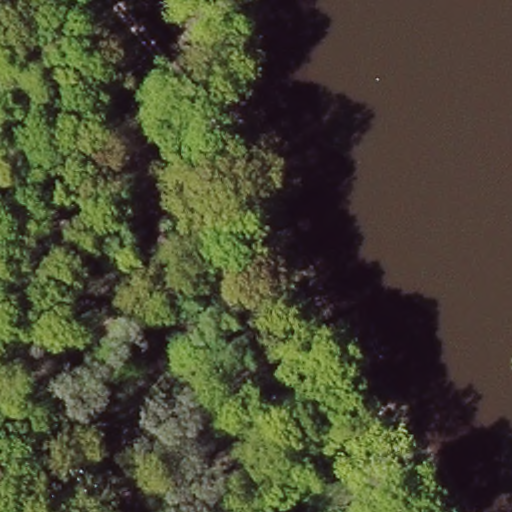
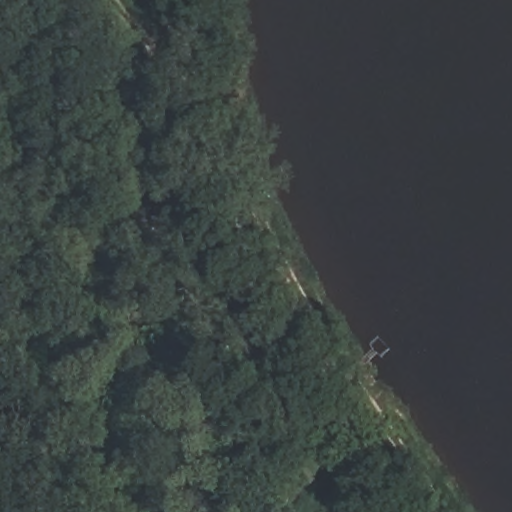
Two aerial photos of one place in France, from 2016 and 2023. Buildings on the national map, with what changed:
[]

